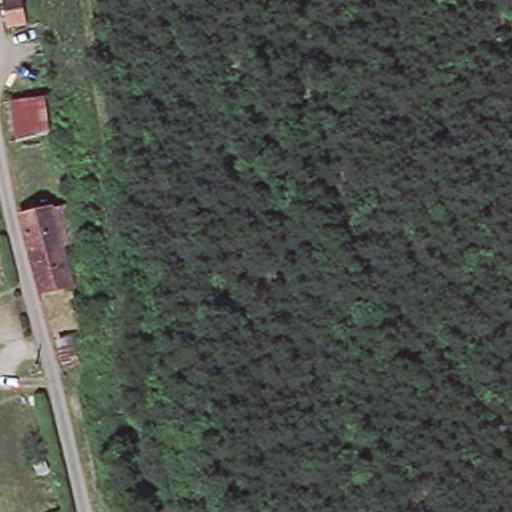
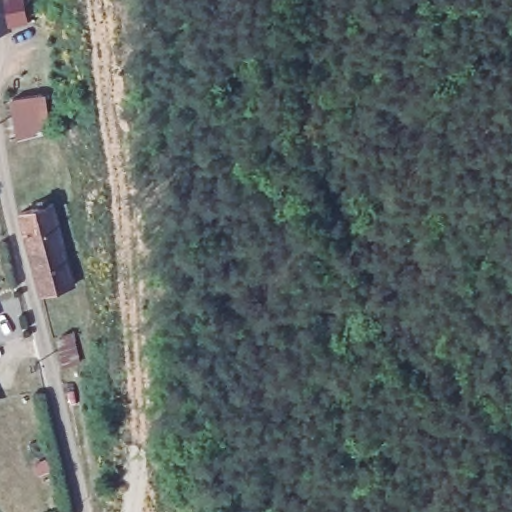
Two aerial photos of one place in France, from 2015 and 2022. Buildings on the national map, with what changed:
unchanged [(23,22),(4,25),(1,0),(20,0),(23,22)]
unchanged [(39,95),(45,134),(17,141),(9,101),(39,95)]
unchanged [(51,203),(62,241),(33,249),(24,211),(51,203)]
unchanged [(62,241),(70,279),(42,288),(33,249),(62,241)]
unchanged [(71,334),(79,362),(60,368),(54,340),(71,334)]

